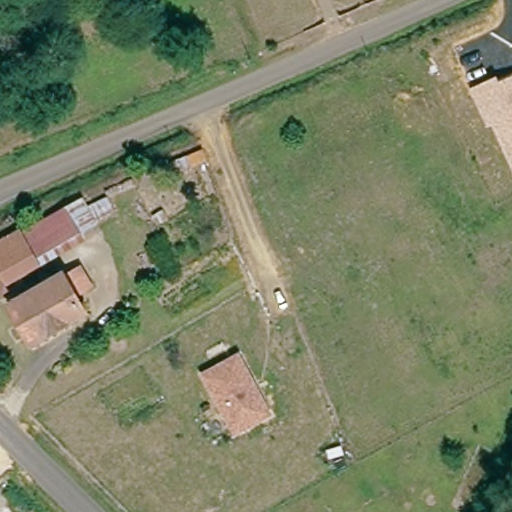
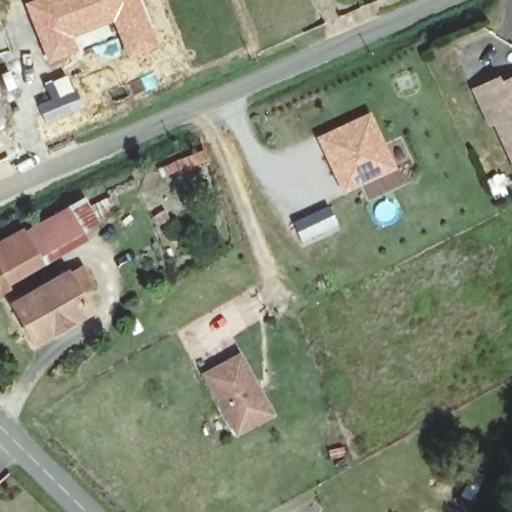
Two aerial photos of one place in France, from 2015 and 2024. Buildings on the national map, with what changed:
new [(31,0),(141,0),(160,47),(127,60),(111,22),(74,39),(79,55),(48,66),(23,3),(31,0)]
new [(1,19),(11,50),(0,54),(0,19),(1,19)]
new [(50,99),(45,85),(66,75),(82,107),(45,124),(36,104),(50,99)]
unchanged [(512,78),(512,162),(494,120),(489,122),(474,87),(497,78),(499,84),(512,78)]
new [(393,166),(343,190),(317,138),(368,112),(393,166)]
unchanged [(26,239),(70,216),(85,209),(100,241),(86,248),(42,270),(26,239)]
unchanged [(42,270),(4,290),(7,297),(0,300),(0,251),(26,239),(42,270)]
unchanged [(68,278),(70,281),(83,275),(92,296),(80,303),(89,320),(31,349),(11,307),(68,278)]
unchanged [(239,354),(266,415),(230,430),(204,370),(239,354)]

